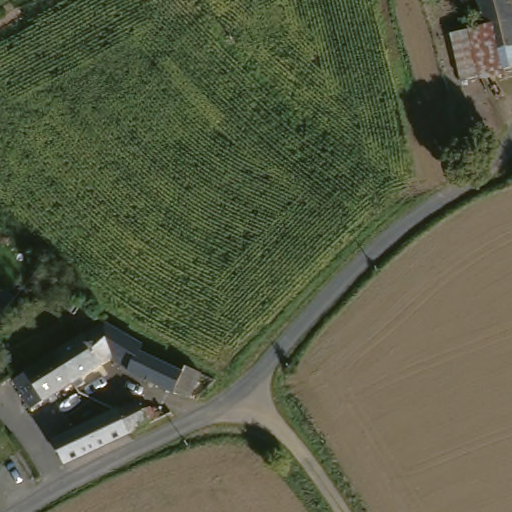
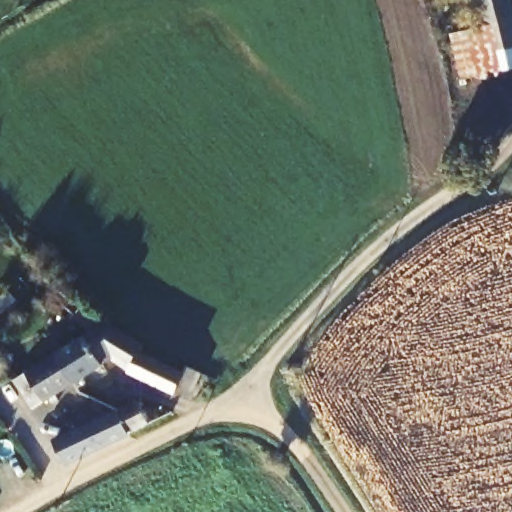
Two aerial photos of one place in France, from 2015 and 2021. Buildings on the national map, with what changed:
unchanged [(512,74),(505,75),(493,28),(486,30),(477,0),(508,0),(512,14),(512,74)]
unchanged [(493,28),(505,75),(462,84),(452,38),(486,30),(493,28)]
unchanged [(81,307),(75,315),(62,306),(68,298),(81,307)]
unchanged [(138,351),(135,358),(134,357),(125,376),(106,364),(97,370),(81,341),(101,328),(138,351)]
unchanged [(73,394),(69,388),(68,388),(50,360),(81,341),(97,370),(77,383),(81,389),(73,394)]
unchanged [(196,378),(185,403),(170,399),(125,377),(125,376),(134,357),(135,358),(178,378),(182,372),(196,378)]
unchanged [(68,388),(27,414),(9,386),(50,360),(68,388)]
unchanged [(55,442),(56,441),(117,412),(137,403),(149,425),(128,434),(65,464),(55,442)]

